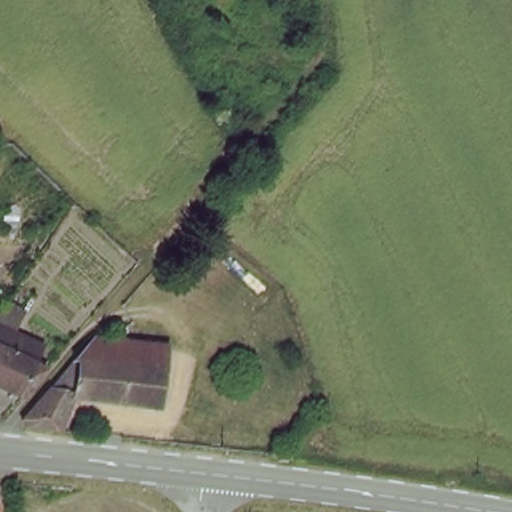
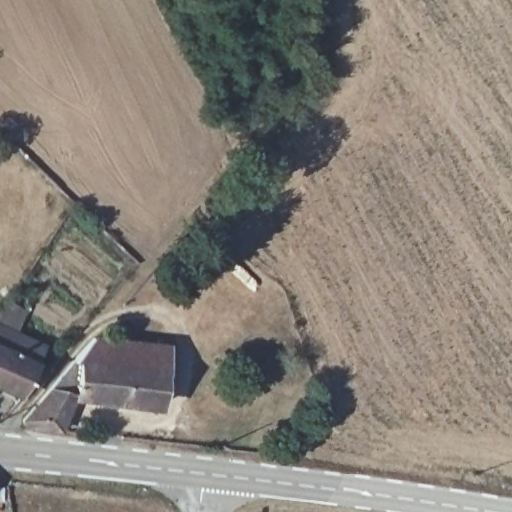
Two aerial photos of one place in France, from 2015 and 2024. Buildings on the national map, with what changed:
unchanged [(31,307),(23,331),(48,343),(20,399),(0,390),(0,317),(10,299),(31,307)]
unchanged [(29,428),(28,426),(26,415),(27,413),(104,332),(180,349),(175,379),(183,381),(181,402),(168,401),(167,410),(76,392),(69,432),(29,428)]

